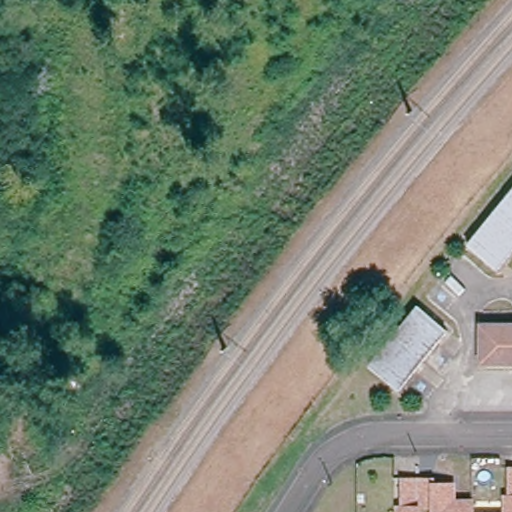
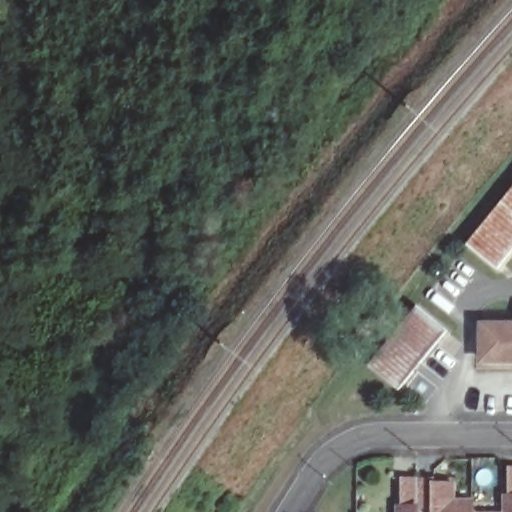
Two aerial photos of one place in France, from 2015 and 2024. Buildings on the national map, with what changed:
unchanged [(512,263),(505,272),(472,247),(512,199),(512,263)]
unchanged [(414,307),(445,333),(400,389),(370,363),(414,307)]
unchanged [(512,364),(485,363),(485,329),(512,329),(512,364)]
unchanged [(508,465),(512,465),(512,512),(508,512),(508,465)]
unchanged [(420,512),(403,512),(403,476),(420,477),(420,512)]
unchanged [(437,477),(437,484),(453,485),(453,500),(472,501),(473,512),(420,512),(420,477),(437,477)]

